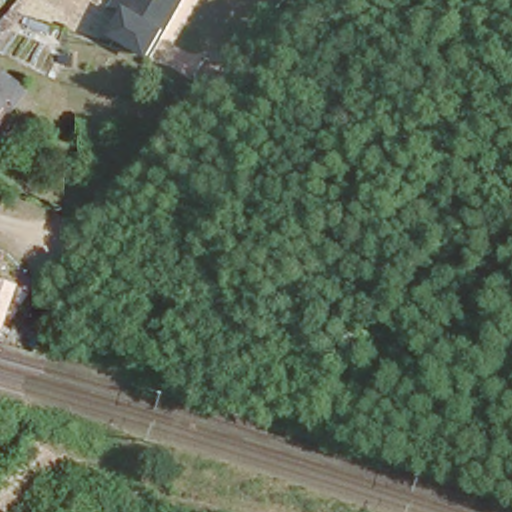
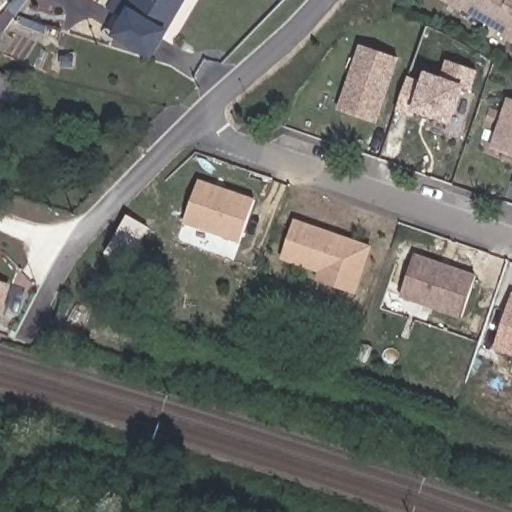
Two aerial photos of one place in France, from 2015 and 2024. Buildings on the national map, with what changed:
unchanged [(126,4),(122,0),(184,0),(145,50),(112,22),(126,4)]
new [(441,0),(512,0),(512,43),(441,0)]
new [(396,57),(376,121),(337,107),(357,44),(396,57)]
new [(470,89),(461,85),(448,123),(412,112),(412,115),(395,110),(408,75),(420,79),(422,70),(440,76),(445,58),(475,70),(470,89)]
unchanged [(0,125),(0,70),(28,93),(0,125)]
new [(490,149),(507,96),(512,98),(512,157),(490,149)]
new [(256,199),(241,242),(180,222),(197,180),(256,199)]
new [(371,245),(355,295),(313,281),(316,274),(280,261),(293,219),(371,245)]
new [(461,318),(400,298),(414,254),(477,275),(461,318)]
unchanged [(0,306),(0,275),(9,278),(0,306)]
new [(496,346),(512,300),(512,352),(496,346)]

